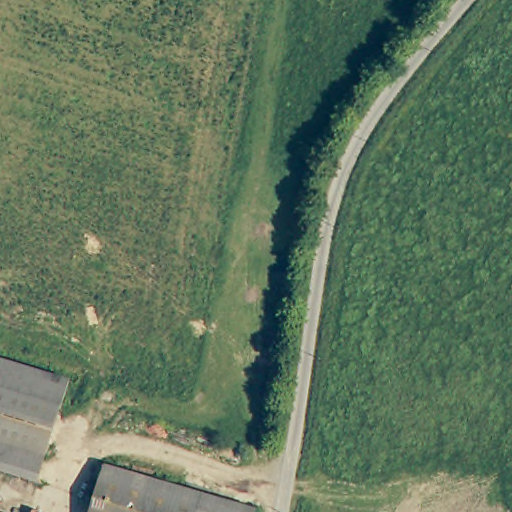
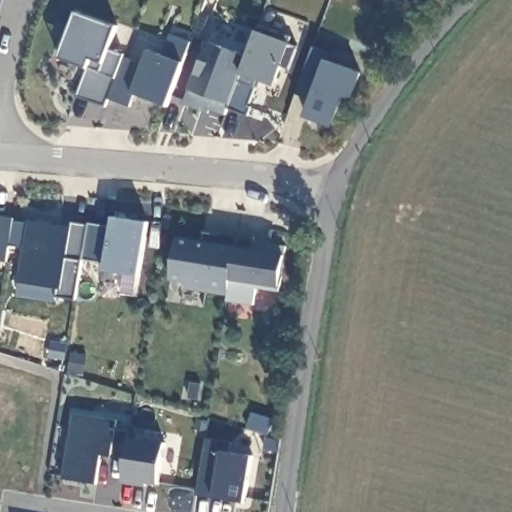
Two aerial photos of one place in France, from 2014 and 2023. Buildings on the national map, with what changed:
new [(109,99),(106,106),(78,95),(88,67),(60,59),(77,10),(120,25),(110,52),(122,57),(109,99)]
new [(297,45),(289,71),(281,67),(275,84),(258,78),(248,104),(252,105),(249,115),(228,107),(240,71),(245,55),(256,29),(292,42),(297,45)]
new [(122,57),(140,63),(145,50),(162,56),(170,34),(190,41),(182,62),(167,105),(135,94),(130,106),(109,99),(122,57)]
new [(208,110),(207,114),(184,104),(203,43),(245,55),(225,114),(208,110)]
new [(335,61),(364,72),(352,99),(344,94),(332,125),(305,116),(310,97),(297,92),(315,45),(335,52),(335,61)]
new [(0,215),(12,217),(5,260),(0,259),(0,215)]
new [(104,271),(105,262),(83,258),(75,300),(57,297),(58,287),(20,281),(27,222),(72,227),(72,220),(89,222),(110,226),(111,216),(147,222),(139,277),(104,271)]
new [(227,302),(226,294),(185,290),(185,283),(171,281),(177,236),(202,240),(204,232),(236,237),(236,235),(254,237),(252,241),(285,246),(279,292),(255,288),(252,306),(227,302)]
demolished [(0,354),(74,375),(41,480),(0,468),(0,354)]
new [(123,477),(127,456),(101,453),(97,482),(64,477),(75,410),(115,417),(114,427),(131,430),(130,437),(166,442),(160,485),(123,477)]
new [(213,496),(197,494),(205,438),(232,442),(230,452),(252,455),(245,502),(213,496)]
demolished [(258,512),(97,512),(95,512),(110,460),(260,503),(258,512)]

